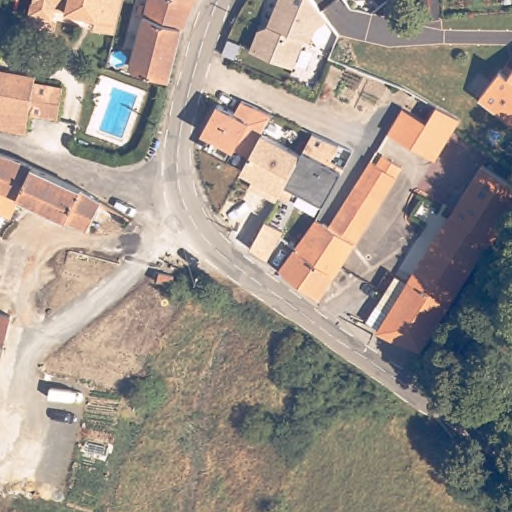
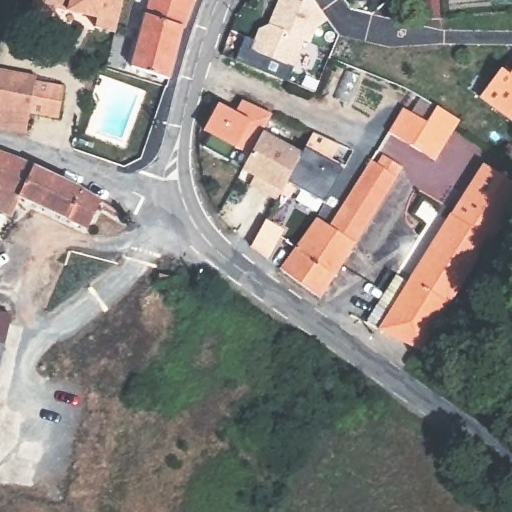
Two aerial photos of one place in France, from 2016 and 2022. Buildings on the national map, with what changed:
unchanged [(54,12),(52,22),(29,16),(32,0),(122,0),(120,9),(117,22),(114,35),(94,29),(96,21),(83,19),(54,12)]
unchanged [(149,0),(186,0),(195,2),(184,30),(181,29),(145,17),(149,0)]
unchanged [(329,21),(315,33),(311,43),(304,41),(293,69),(251,50),(260,30),(270,24),(279,0),(313,0),(329,21)]
unchanged [(181,29),(177,45),(168,80),(156,76),(131,69),(145,17),(181,29)]
unchanged [(45,68),(41,82),(69,87),(63,119),(35,114),(32,134),(0,129),(0,59),(45,68)]
unchanged [(506,67),(512,71),(512,115),(485,96),(506,67)]
unchanged [(398,130),(419,93),(443,107),(446,109),(464,119),(460,127),(440,160),(395,134),(398,130)]
unchanged [(236,112),(242,99),(274,114),(263,132),(303,153),(314,134),(341,147),(333,162),(344,169),(324,206),(297,191),(292,201),(279,195),(275,202),(251,189),(257,178),(243,170),(250,156),(237,149),(203,131),(219,103),(236,112)]
unchanged [(296,246),(315,216),(331,225),(363,174),(366,169),(374,157),(381,161),(383,156),(393,161),(402,167),(400,172),(389,189),(321,298),(282,269),(284,266),(296,246)]
unchanged [(82,195),(108,219),(99,240),(0,190),(0,158),(82,195)]
unchanged [(512,185),(512,200),(499,220),(459,193),(478,163),(512,185)]
unchanged [(459,193),(499,220),(488,237),(485,236),(445,302),(406,277),(459,193)]
unchanged [(286,232),(269,261),(251,246),(266,220),(286,232)]
unchanged [(445,302),(432,322),(416,349),(413,347),(374,328),(375,326),(363,318),(375,300),(387,279),(393,272),(404,279),(406,277),(445,302)]
unchanged [(5,276),(0,298),(0,275),(5,276)]
unchanged [(15,316),(0,375),(0,312),(15,316)]

